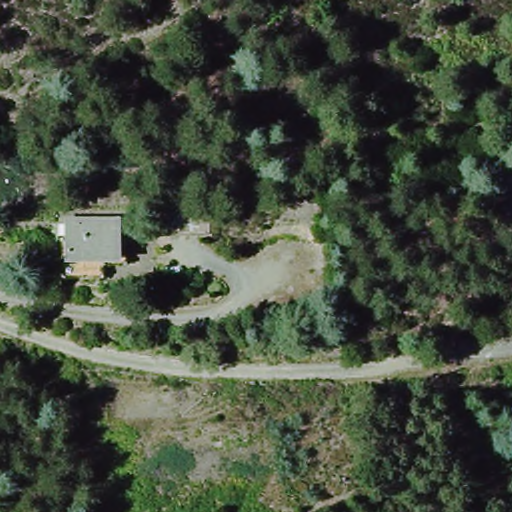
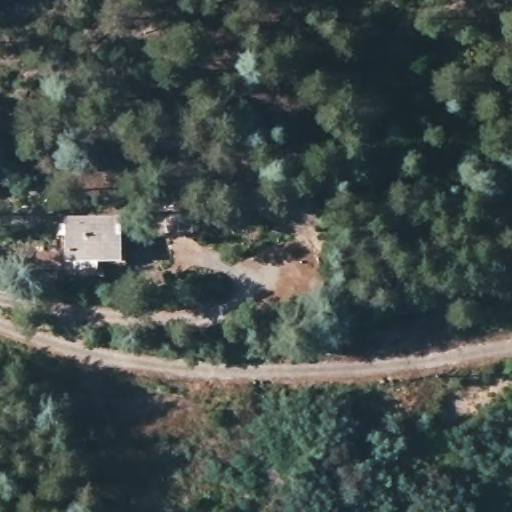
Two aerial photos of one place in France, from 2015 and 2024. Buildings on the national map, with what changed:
unchanged [(71,123),(65,148),(44,144),(52,119),(71,123)]
unchanged [(204,177),(251,177),(253,215),(203,215),(204,177)]
unchanged [(71,215),(120,215),(120,241),(120,258),(113,259),(114,283),(71,282),(73,259),(71,215)]

